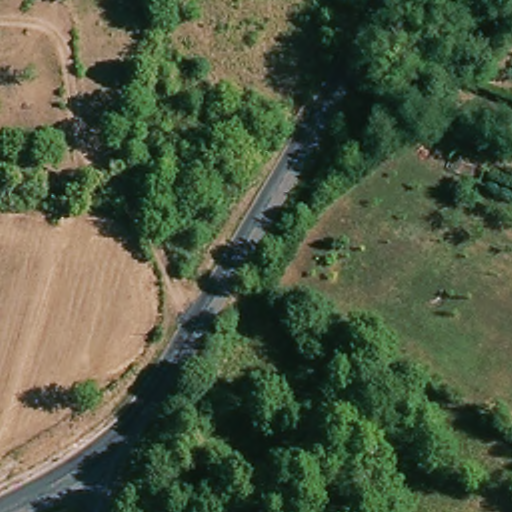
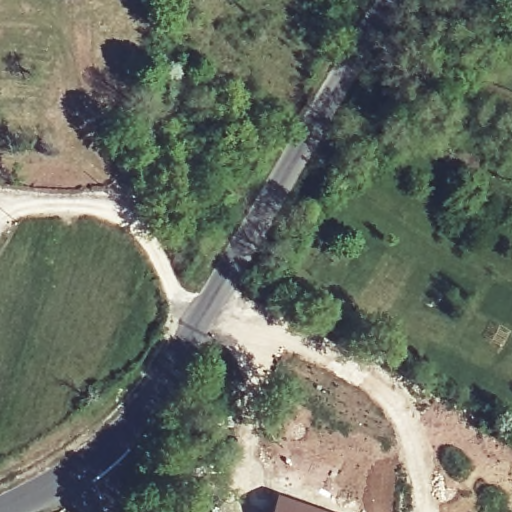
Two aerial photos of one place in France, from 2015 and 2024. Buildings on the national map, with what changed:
new [(331,512),(269,512),(275,495),(331,512)]

